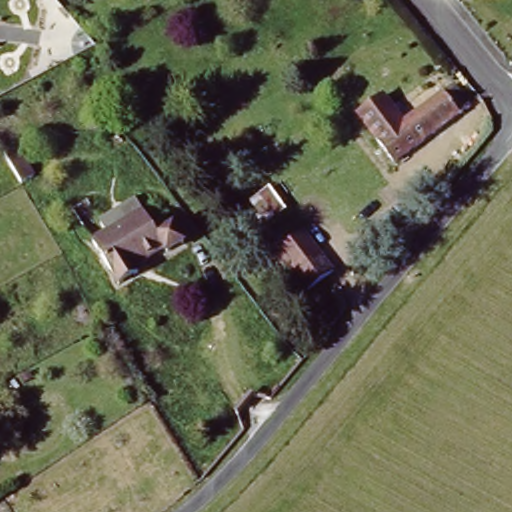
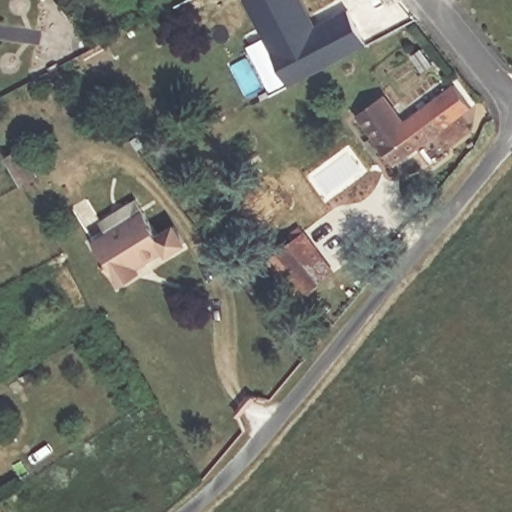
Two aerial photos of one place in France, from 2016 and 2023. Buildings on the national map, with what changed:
new [(246,0),(306,0),(317,24),(349,7),(369,45),(289,87),(246,0)]
unchanged [(362,115),(387,96),(406,121),(456,84),(473,106),(397,161),(362,115)]
unchanged [(21,147),(36,176),(23,183),(7,154),(21,147)]
unchanged [(257,210),(275,197),(291,217),(273,231),(257,210)]
unchanged [(158,241),(173,232),(185,250),(168,259),(166,255),(135,272),(139,279),(119,290),(93,247),(108,239),(105,234),(101,227),(135,206),(158,241)]
unchanged [(287,257),(313,237),(343,277),(318,296),(287,257)]

